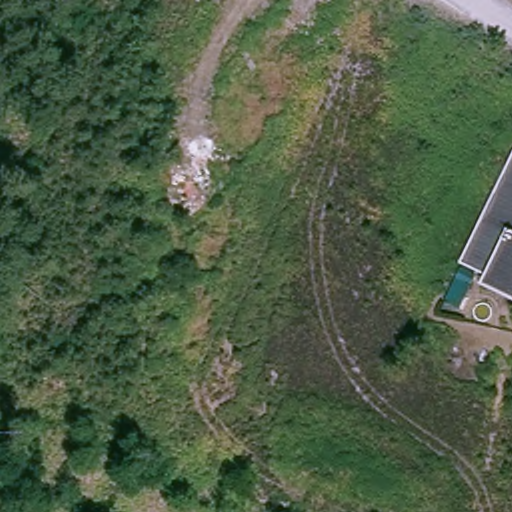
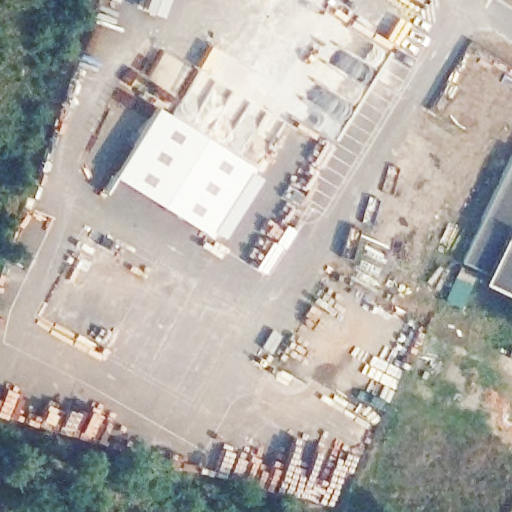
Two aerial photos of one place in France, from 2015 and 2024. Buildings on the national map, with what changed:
new [(165,0),(160,17),(141,10),(144,0),(165,0)]
new [(161,207),(112,177),(155,107),(251,169),(208,235),(161,207)]
unchanged [(512,301),(475,285),(478,273),(448,262),(506,149),(512,152),(512,301)]

